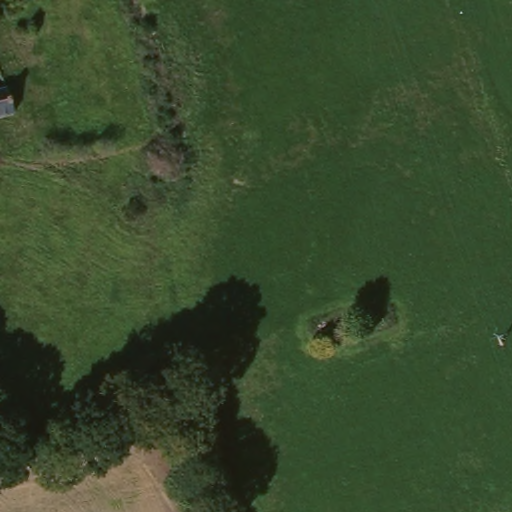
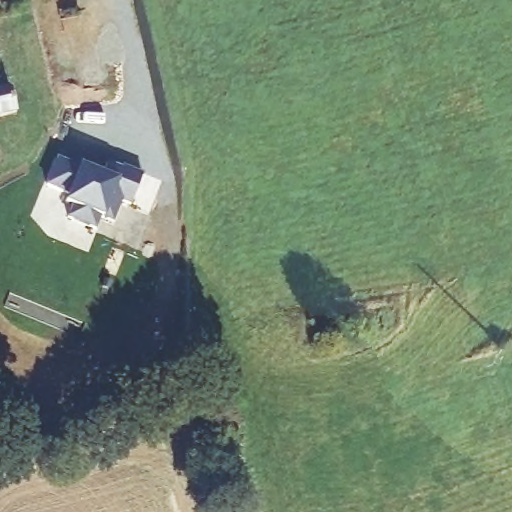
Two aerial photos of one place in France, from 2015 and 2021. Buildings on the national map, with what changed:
unchanged [(0,113),(0,81),(9,111),(0,113)]
new [(75,168),(97,177),(103,165),(119,170),(121,167),(140,175),(128,212),(119,207),(109,229),(98,225),(93,237),(61,224),(66,211),(59,208),(62,202),(37,192),(51,158),(75,168)]

